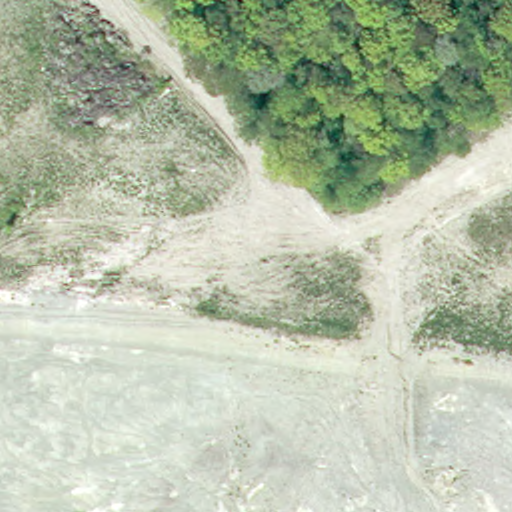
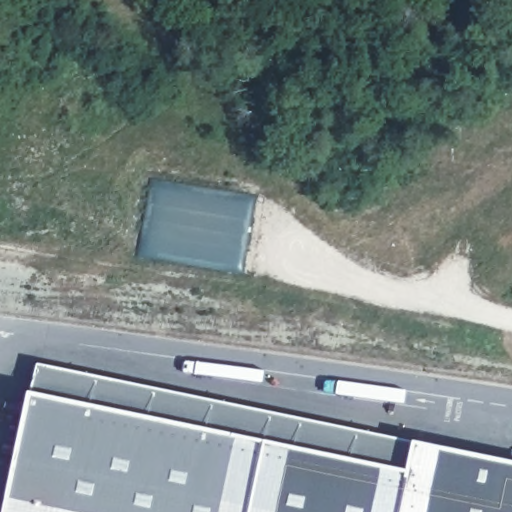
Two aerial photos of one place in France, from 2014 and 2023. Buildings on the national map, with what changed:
new [(419,444),(512,463),(512,512),(9,512),(34,393),(414,472),(419,444)]

